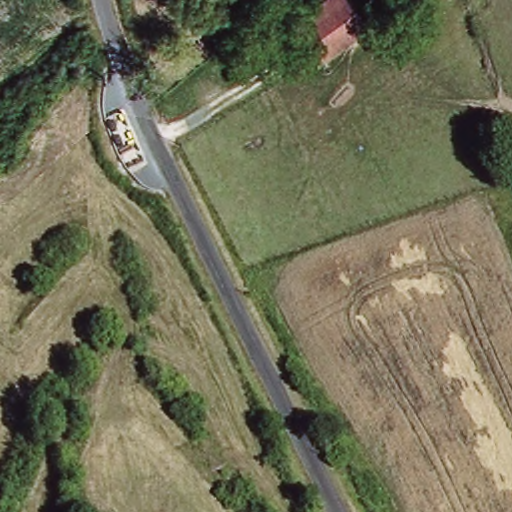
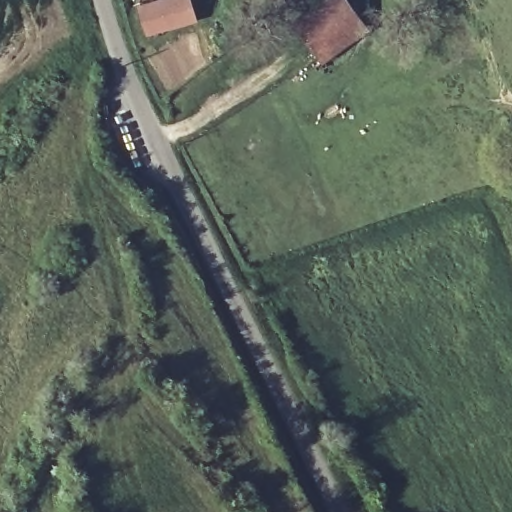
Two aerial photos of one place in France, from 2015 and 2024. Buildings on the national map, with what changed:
new [(146,36),(137,4),(153,0),(191,0),(197,21),(146,36)]
unchanged [(363,30),(322,60),(293,20),(321,0),(341,0),(363,30)]

